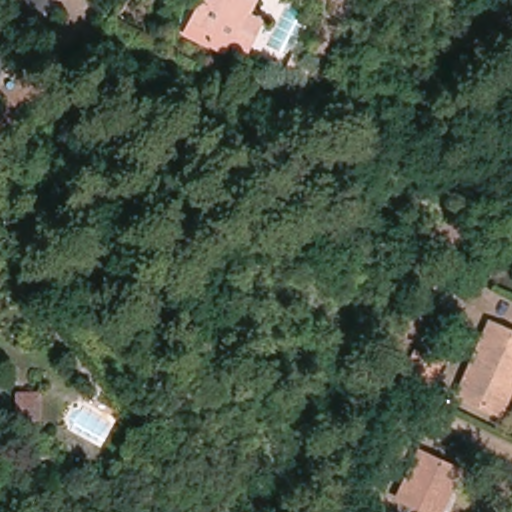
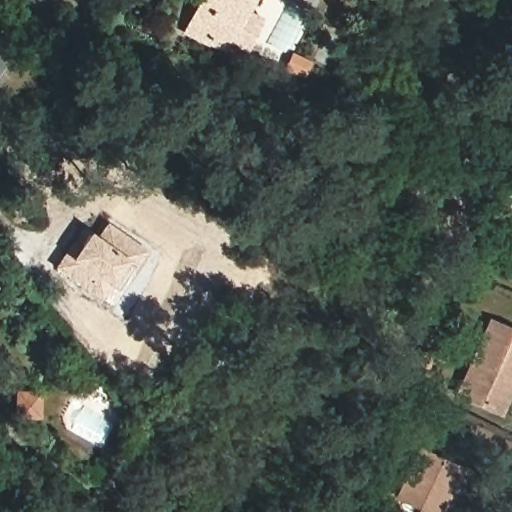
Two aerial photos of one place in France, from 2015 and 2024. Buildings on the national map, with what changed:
unchanged [(266,21),(247,52),(224,41),(220,50),(181,32),(197,0),(252,0),(247,10),(266,21)]
unchanged [(301,76),(287,69),(293,56),(308,63),(301,76)]
demolished [(57,99),(72,109),(62,123),(60,122),(47,113),(57,99)]
new [(107,221),(147,250),(108,305),(59,270),(88,232),(96,235),(107,221)]
unchanged [(456,394),(489,323),(512,333),(512,365),(492,410),(456,394)]
unchanged [(396,383),(412,351),(439,363),(423,398),(396,383)]
unchanged [(39,393),(38,418),(15,418),(16,392),(39,393)]
unchanged [(458,470),(438,512),(418,512),(419,509),(396,497),(417,451),(458,470)]

